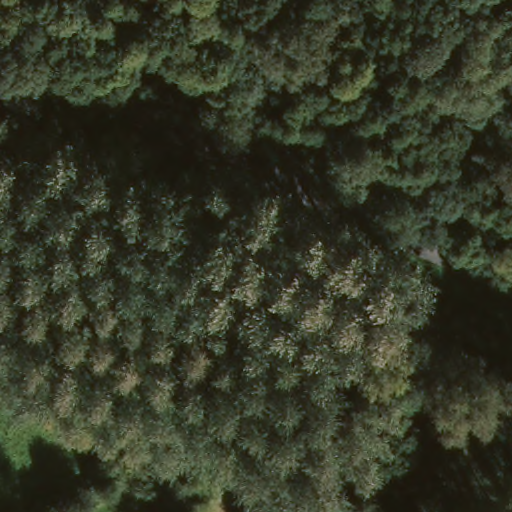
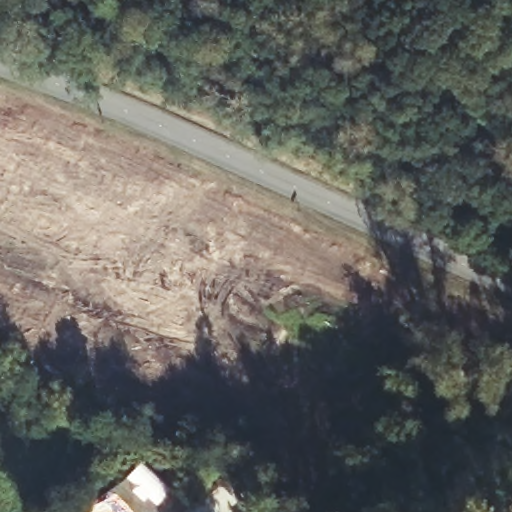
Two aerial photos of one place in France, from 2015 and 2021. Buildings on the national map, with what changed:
unchanged [(254,512),(264,502),(274,512),(254,512)]

